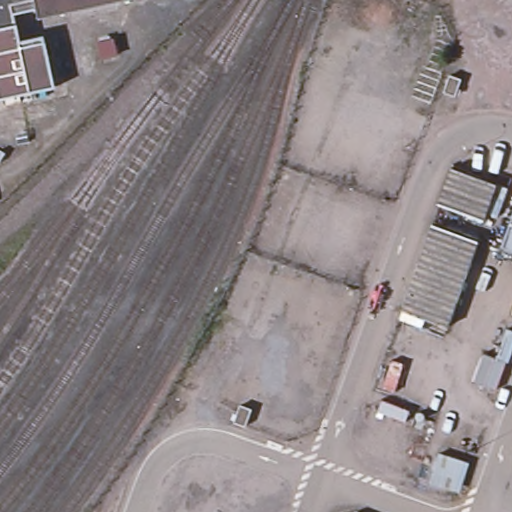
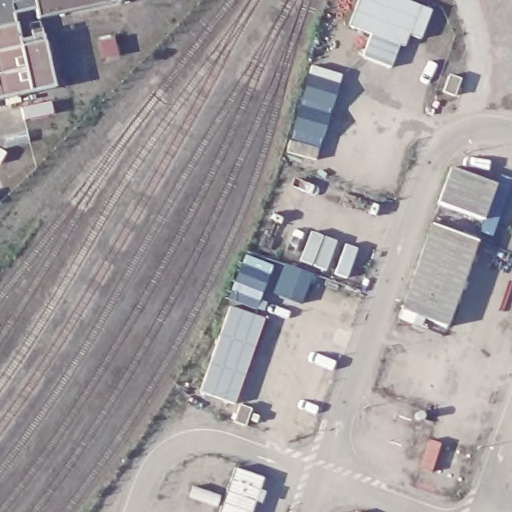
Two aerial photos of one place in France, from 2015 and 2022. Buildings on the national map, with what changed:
unchanged [(13,5),(22,46),(46,41),(56,87),(0,100),(0,0),(35,0),(13,5)]
unchanged [(35,0),(125,0),(41,18),(35,0)]
new [(434,9),(424,38),(412,36),(407,46),(402,45),(395,65),(366,54),(373,34),(352,26),(361,0),(410,0),(434,9)]
new [(344,73),(317,157),(288,152),(312,64),(344,73)]
unchanged [(493,184),(479,218),(433,199),(448,165),(493,184)]
unchanged [(474,239),(441,324),(397,308),(431,222),(474,239)]
demolished [(504,249),(512,224),(512,252),(504,249)]
new [(312,274),(302,303),(276,292),(284,265),(312,274)]
new [(266,316),(236,403),(202,392),(232,305),(266,316)]
demolished [(496,358),(505,329),(512,331),(512,346),(497,391),(474,383),(482,355),(496,358)]

